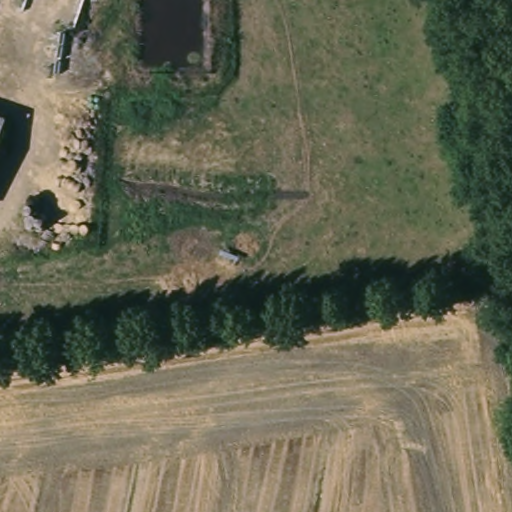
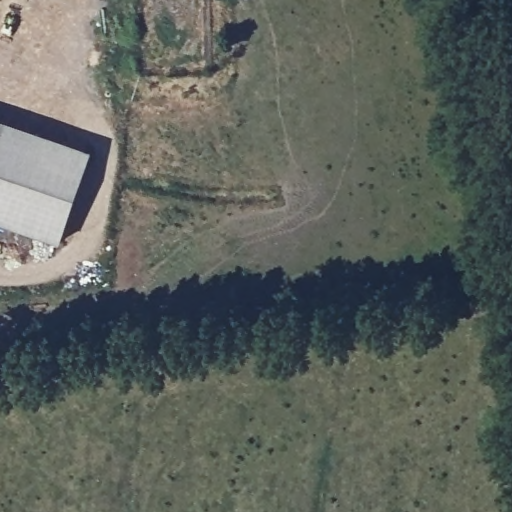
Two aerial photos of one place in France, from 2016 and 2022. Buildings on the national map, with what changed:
unchanged [(9,122),(0,147),(0,119),(9,122)]
new [(9,122),(47,135),(49,128),(64,133),(61,140),(92,150),(63,241),(0,220),(0,147),(9,122)]

